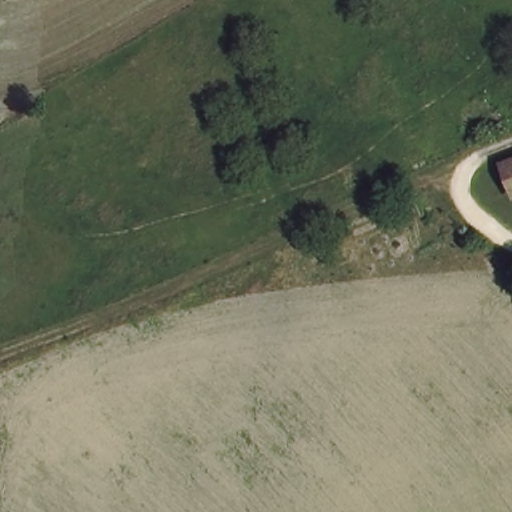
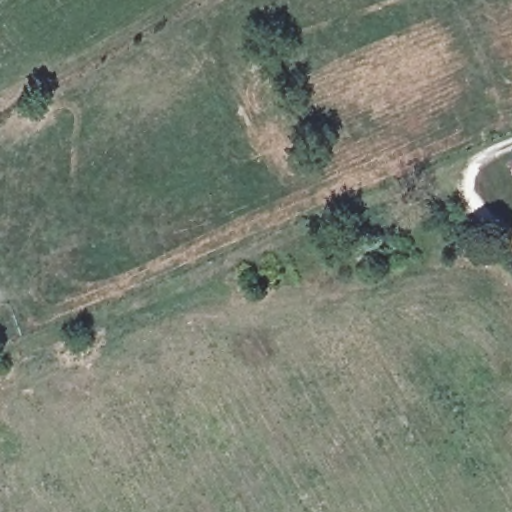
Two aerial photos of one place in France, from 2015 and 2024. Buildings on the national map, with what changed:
unchanged [(510,170),(512,168),(512,175),(510,170)]

